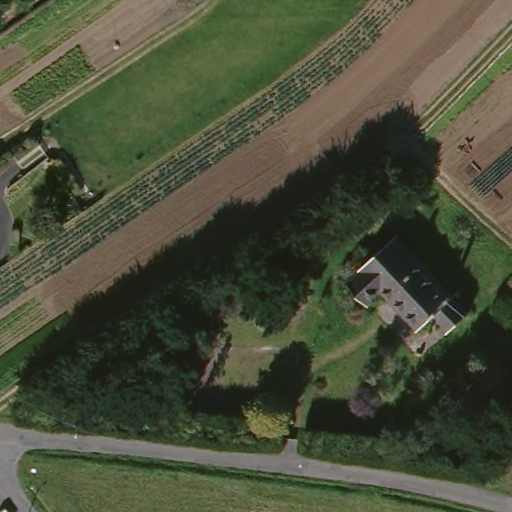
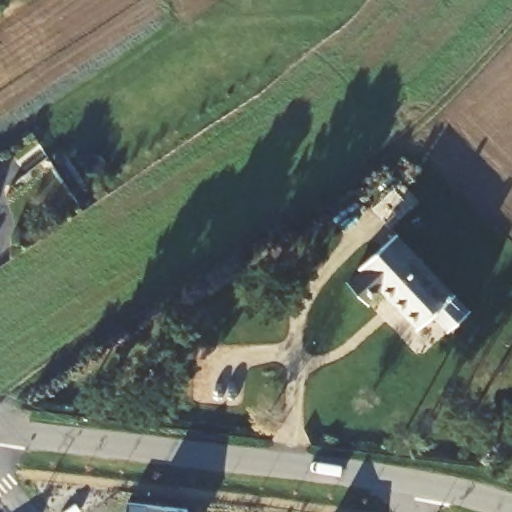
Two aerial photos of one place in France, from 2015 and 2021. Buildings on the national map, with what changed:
unchanged [(479,310),(456,330),(441,313),(427,327),(392,289),(377,302),(357,280),(372,267),(369,266),(407,234),(479,310)]
new [(149,507),(184,512),(127,512),(128,505),(149,507)]

